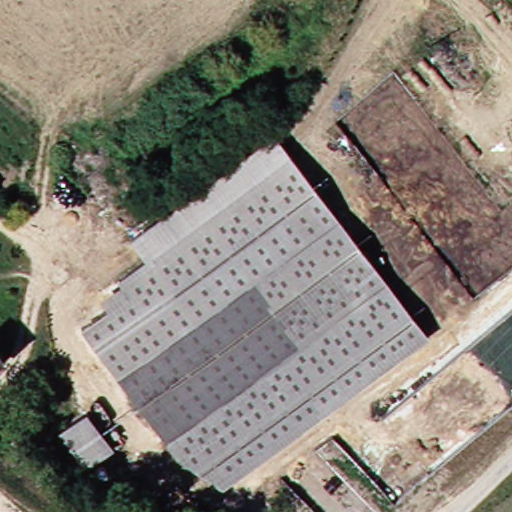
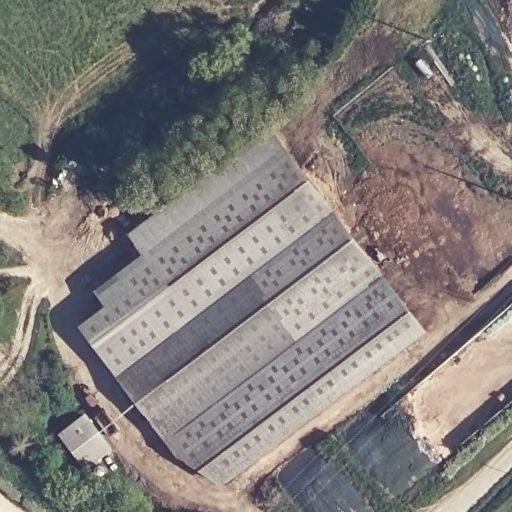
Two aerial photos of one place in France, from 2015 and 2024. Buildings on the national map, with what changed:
unchanged [(428,334),(225,487),(179,459),(83,328),(108,309),(101,297),(120,281),(118,277),(145,256),(131,236),(271,129),(428,334)]
unchanged [(0,366),(0,356),(6,361),(0,366)]
unchanged [(113,452),(87,469),(64,436),(90,417),(113,452)]

